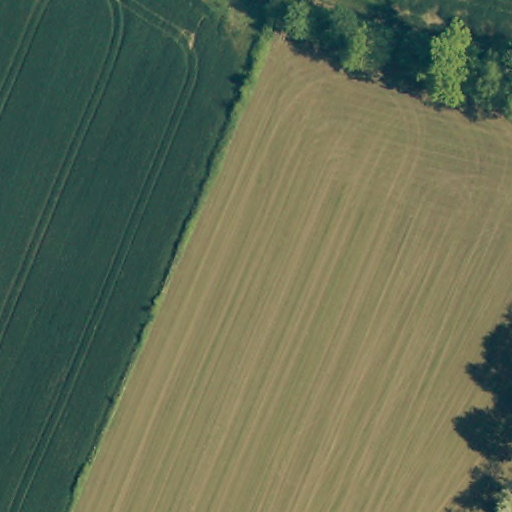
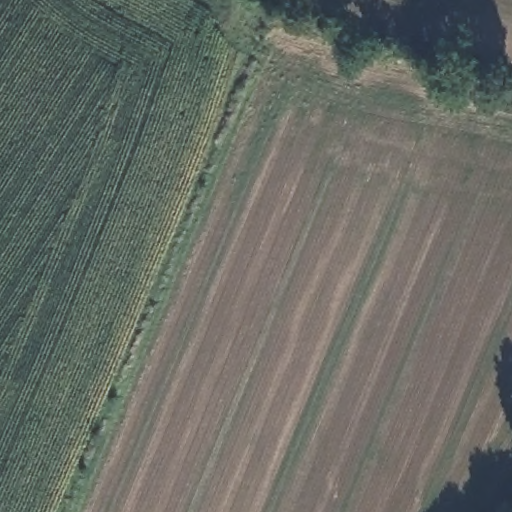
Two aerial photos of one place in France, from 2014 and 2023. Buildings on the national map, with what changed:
[]

